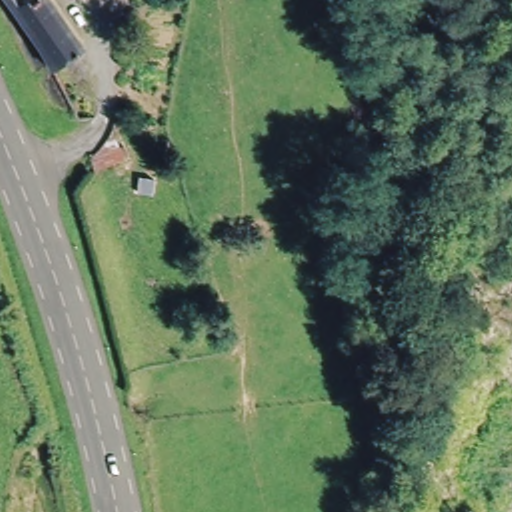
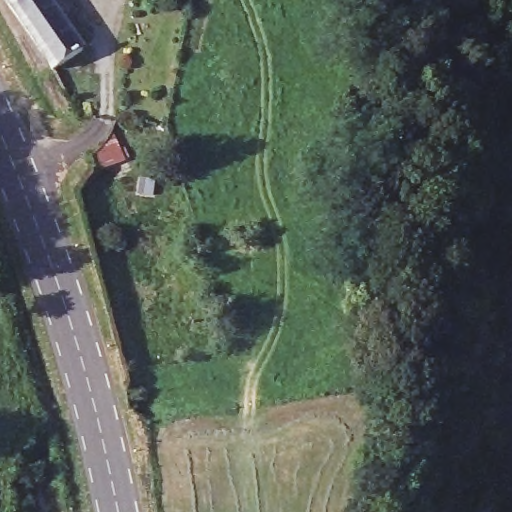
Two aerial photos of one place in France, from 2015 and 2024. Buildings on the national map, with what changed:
unchanged [(8,10),(22,0),(49,0),(81,49),(47,68),(8,10)]

